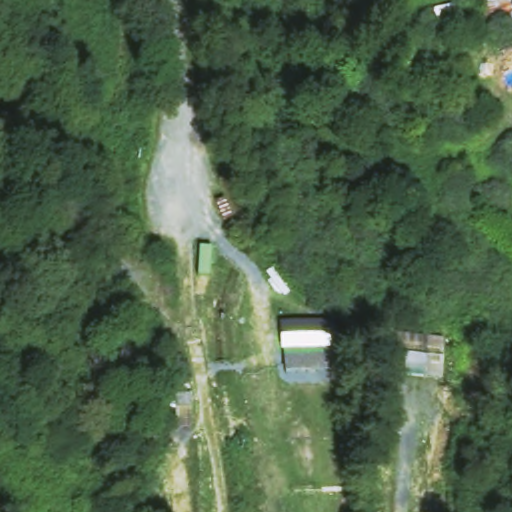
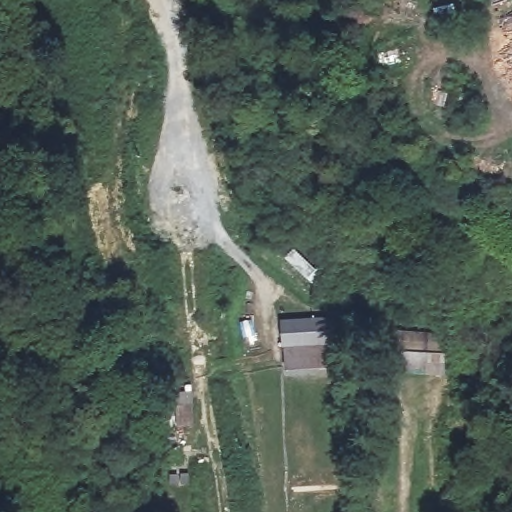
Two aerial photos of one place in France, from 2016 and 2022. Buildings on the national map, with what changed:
unchanged [(512,20),(503,24),(492,0),(512,0),(512,20)]
unchanged [(423,331),(421,369),(393,368),(395,330),(423,331)]
unchanged [(333,345),(335,367),(284,370),(283,346),(333,345)]

